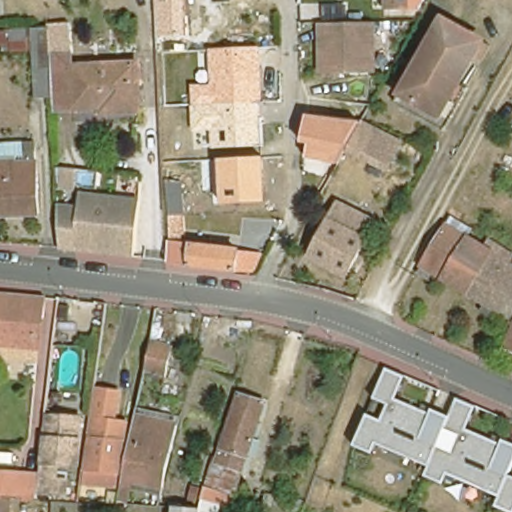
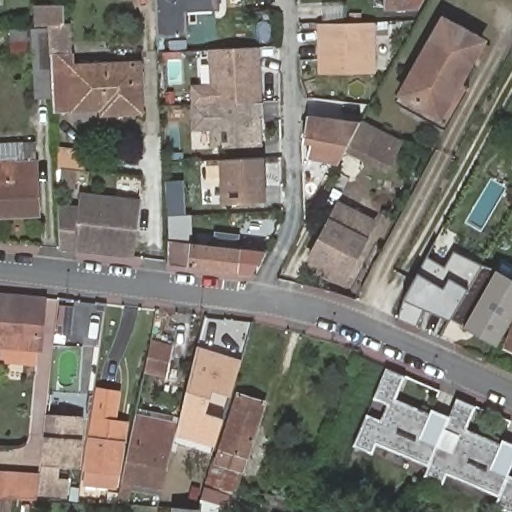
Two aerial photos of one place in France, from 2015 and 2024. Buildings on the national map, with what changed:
unchanged [(187,0),(189,41),(156,41),(155,0),(187,0)]
unchanged [(387,6),(388,0),(421,0),(418,5),(387,6)]
unchanged [(319,72),(317,19),(326,19),(326,9),(343,9),(343,19),(367,18),(368,71),(319,72)]
unchanged [(441,131),(424,123),(391,104),(439,17),(477,39),(454,83),(464,89),(441,131)]
unchanged [(32,24),(32,26),(33,49),(0,51),(0,27),(32,24)]
unchanged [(32,26),(48,26),(49,70),(49,95),(35,95),(33,70),(33,49),(32,26)]
unchanged [(191,84),(210,83),(208,49),(259,47),(262,102),(192,106),(191,84)]
unchanged [(54,89),(52,51),(71,50),(72,64),(138,61),(140,109),(102,111),(102,104),(54,106),(54,89)]
unchanged [(262,102),(264,145),(211,148),(211,133),(193,132),(192,106),(262,102)]
unchanged [(304,154),(307,141),(300,139),(299,132),(307,113),(354,126),(348,138),(335,160),(304,154)]
unchanged [(388,134),(390,130),(404,136),(391,160),(348,138),(354,126),(358,119),(388,134)]
unchanged [(32,139),(37,213),(0,215),(0,140),(32,139)]
unchanged [(266,202),(222,204),(219,160),(263,157),(266,202)]
unchanged [(170,238),(167,167),(181,166),(184,239),(170,238)]
unchanged [(76,206),(79,192),(138,199),(131,257),(57,249),(53,228),(56,203),(76,206)]
unchanged [(340,205),(371,222),(362,238),(367,241),(347,278),(311,259),(340,205)]
demolished [(440,229),(463,243),(484,254),(488,247),(507,258),(504,265),(512,269),(512,314),(508,320),(417,270),(440,229)]
unchanged [(170,261),(170,259),(170,238),(184,239),(238,247),(234,269),(170,261)]
new [(449,321),(423,309),(416,325),(398,318),(402,303),(427,256),(445,265),(453,251),(482,265),(449,321)]
new [(496,269),(512,278),(512,318),(496,346),(463,325),(450,319),(482,265),(496,269)]
unchanged [(30,359),(0,355),(0,302),(39,304),(38,323),(33,323),(30,359)]
unchanged [(512,325),(512,354),(501,349),(512,325)]
unchanged [(170,344),(164,377),(142,372),(149,340),(170,344)]
new [(197,346),(241,359),(229,396),(212,390),(206,412),(224,418),(214,447),(176,434),(197,346)]
unchanged [(497,497),(447,477),(444,484),(423,477),(428,465),(378,444),(373,453),(353,445),(366,413),(381,419),(387,404),(371,398),(385,368),(407,377),(395,399),(428,412),(430,409),(448,416),(455,399),(476,407),(467,429),(501,443),(502,440),(512,444),(512,512),(505,512),(493,508),(497,497)]
unchanged [(122,443),(117,472),(85,466),(99,390),(117,393),(113,422),(124,424),(122,443)]
unchanged [(211,464),(233,396),(258,404),(236,473),(228,497),(200,488),(207,464),(211,464)]
unchanged [(176,423),(169,449),(158,491),(118,483),(128,437),(133,414),(176,423)]
unchanged [(74,466),(55,463),(51,491),(59,491),(59,496),(37,494),(41,462),(44,462),(47,438),(44,437),(47,415),(81,419),(74,466)]
unchanged [(5,471),(36,473),(33,498),(13,497),(12,512),(0,512),(0,495),(2,496),(5,471)]
unchanged [(188,512),(164,512),(164,507),(188,509),(188,512)]

